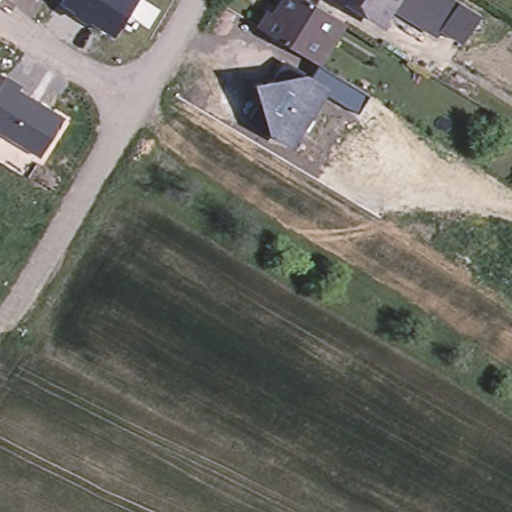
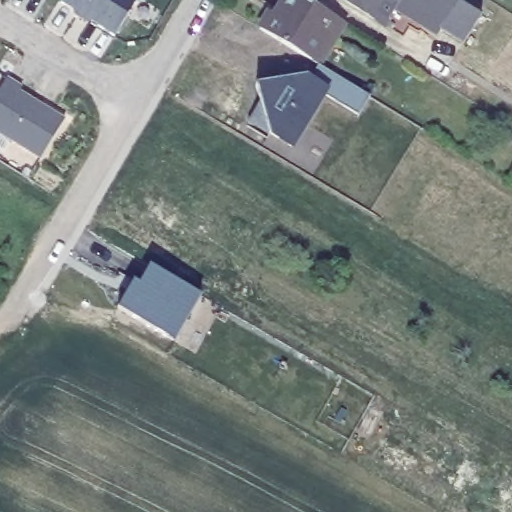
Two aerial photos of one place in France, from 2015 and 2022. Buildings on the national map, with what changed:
unchanged [(61,0),(134,0),(114,34),(60,1),(61,0)]
unchanged [(317,64),(306,57),(258,28),(268,10),(275,0),(308,0),(332,14),(342,21),(317,64)]
unchanged [(470,50),(446,35),(442,42),(397,14),(388,29),(378,23),(340,0),(453,0),(487,21),(470,50)]
unchanged [(260,102),(257,88),(273,80),(283,63),(325,90),(291,144),(248,122),(260,102)]
unchanged [(8,79),(22,87),(23,90),(65,119),(40,161),(0,135),(0,92),(8,79)]
new [(202,296),(176,341),(117,308),(134,280),(140,283),(150,267),(202,296)]

